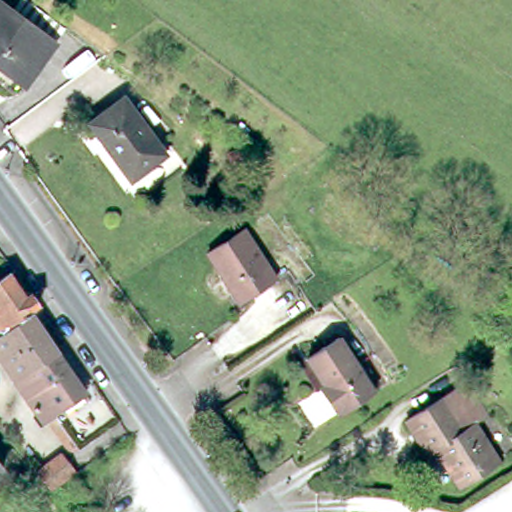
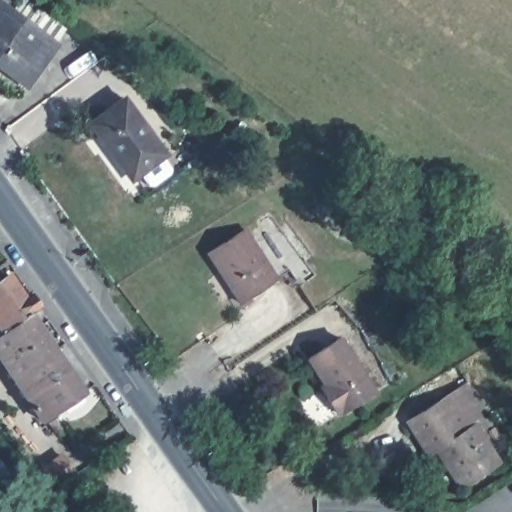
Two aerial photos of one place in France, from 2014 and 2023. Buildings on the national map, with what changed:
unchanged [(19,3),(62,35),(22,89),(0,73),(0,11),(9,17),(19,3)]
unchanged [(107,141),(95,125),(127,100),(166,154),(135,176),(109,140),(107,141)]
unchanged [(245,231),(277,280),(242,302),(210,254),(245,231)]
unchanged [(0,285),(15,275),(30,297),(35,293),(45,307),(36,314),(8,332),(0,321),(0,285)]
unchanged [(0,351),(0,338),(8,332),(36,314),(90,392),(49,421),(0,351)]
unchanged [(309,359),(340,340),(376,393),(345,413),(344,410),(338,414),(327,396),(332,393),(309,359)]
unchanged [(462,490),(441,456),(429,456),(408,423),(471,380),(492,411),(479,425),(507,463),(462,490)]
unchanged [(37,474),(40,471),(63,455),(76,472),(50,492),(37,474)]

